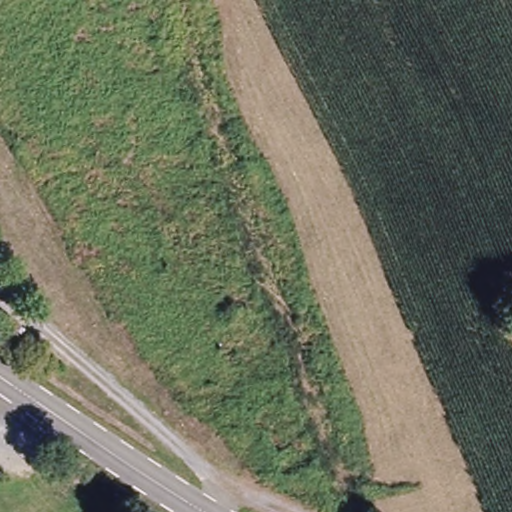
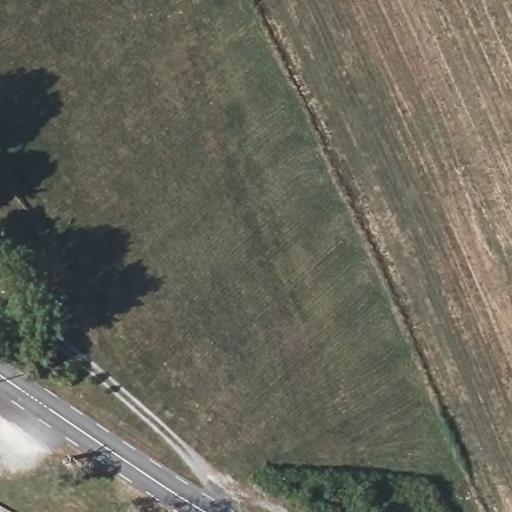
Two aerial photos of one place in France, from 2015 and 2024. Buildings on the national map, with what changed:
[]

